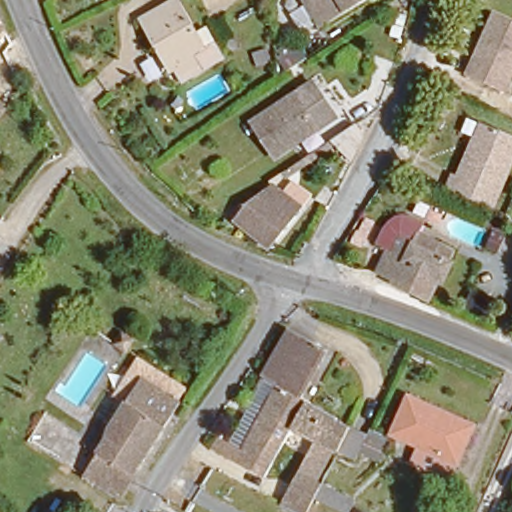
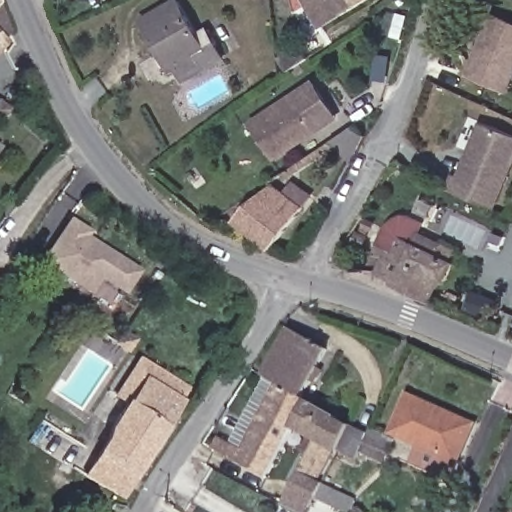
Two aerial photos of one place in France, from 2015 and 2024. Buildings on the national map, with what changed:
unchanged [(217,44),(225,61),(185,79),(177,64),(170,67),(144,15),(179,0),(197,34),(209,29),(217,44)]
unchanged [(240,0),(251,0),(243,4),(240,0)]
unchanged [(367,0),(320,26),(305,0),(367,0)]
unchanged [(512,75),(505,92),(467,74),(493,10),(512,20),(512,75)]
unchanged [(10,36),(0,47),(0,13),(10,36)]
unchanged [(262,116),(306,86),(321,107),(328,118),(285,149),(275,135),(262,116)]
unchanged [(6,119),(0,115),(0,102),(4,98),(14,106),(6,119)]
unchanged [(365,130),(342,157),(331,139),(358,119),(365,130)]
unchanged [(512,167),(495,210),(443,188),(452,171),(457,172),(482,123),(512,134),(512,167)]
new [(7,146),(0,156),(0,142),(7,146)]
unchanged [(232,227),(245,207),(267,188),(296,206),(267,248),(232,227)]
unchanged [(385,220),(375,242),(364,236),(368,229),(372,230),(378,216),(385,220)]
new [(67,218),(85,230),(82,235),(135,269),(120,292),(97,276),(87,292),(40,261),(67,218)]
unchanged [(442,279),(439,278),(429,295),(396,281),(398,277),(377,265),(390,242),(406,250),(413,234),(455,255),(442,279)]
unchanged [(261,372),(288,324),(327,343),(300,392),(280,382),(261,372)]
unchanged [(81,472),(100,444),(122,409),(110,399),(139,356),(143,359),(189,387),(182,398),(119,496),(81,472)]
unchanged [(266,470),(202,439),(210,426),(244,442),(280,382),(300,392),(307,397),(292,423),(266,470)]
unchanged [(391,432),(411,395),(475,428),(453,466),(391,432)]
unchanged [(290,489),(318,436),(292,423),(307,397),(351,421),(352,422),(370,431),(361,461),(340,448),(332,444),(322,468),(328,471),(307,510),(273,495),(281,486),(290,489)]

